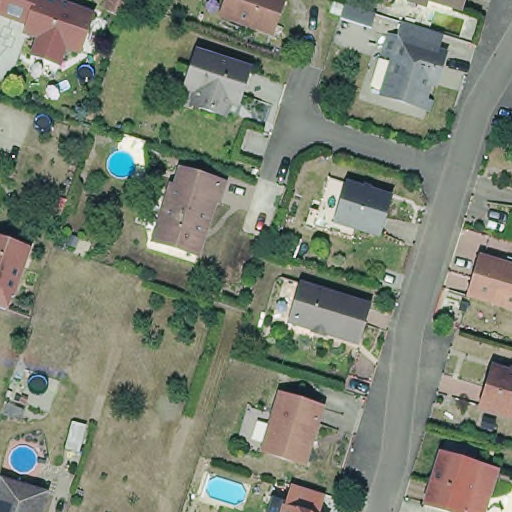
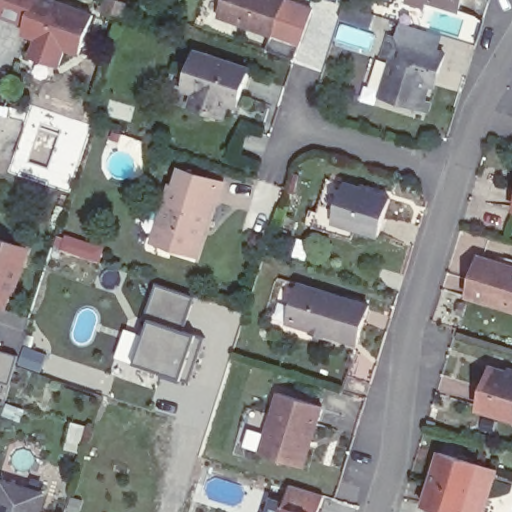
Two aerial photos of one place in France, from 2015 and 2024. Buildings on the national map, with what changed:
unchanged [(35,35),(23,31),(27,23),(0,13),(0,2),(1,0),(55,0),(95,14),(80,52),(65,47),(60,66),(28,56),(35,35)]
unchanged [(272,38),(221,19),(228,0),(275,0),(284,4),(275,28),(284,31),(280,41),(272,38)]
unchanged [(414,0),(431,0),(430,5),(414,0)]
unchanged [(442,0),(463,0),(462,6),(442,0)]
unchanged [(422,114),(380,100),(391,65),(382,64),(389,44),(397,46),(401,33),(428,43),(442,46),(437,59),(446,62),(440,81),(436,94),(429,93),(424,109),(431,110),(429,116),(422,114)]
unchanged [(230,92),(227,104),(196,96),(200,84),(188,80),(193,64),(200,42),(252,59),(242,89),(240,95),(230,92)]
unchanged [(171,184),(175,186),(181,168),(223,183),(217,201),(213,199),(195,254),(153,239),(171,184)]
unchanged [(346,223),(367,229),(363,239),(327,228),(342,179),(359,183),(346,223)]
unchanged [(346,223),(359,183),(402,197),(390,237),(367,229),(346,223)]
unchanged [(0,303),(0,237),(29,247),(6,305),(0,303)]
unchanged [(509,314),(452,296),(465,258),(492,266),(494,259),(512,265),(512,315),(509,314)]
unchanged [(359,340),(291,319),(303,280),(371,302),(359,340)]
new [(191,297),(179,330),(201,337),(187,384),(128,363),(154,284),(191,297)]
new [(1,343),(0,347),(0,343),(1,343)]
new [(19,356),(10,385),(0,382),(0,350),(19,356)]
unchanged [(495,371),(512,376),(512,419),(482,410),(495,371)]
unchanged [(310,463),(267,451),(265,451),(278,412),(284,393),(328,407),(310,463)]
unchanged [(265,459),(240,451),(255,404),(278,412),(265,451),(267,451),(265,459)]
unchanged [(484,512),(449,512),(423,504),(438,454),(482,468),(497,472),(484,512)]
unchanged [(39,494),(33,512),(0,512),(0,483),(39,494)]
unchanged [(279,510),(285,512),(278,512),(279,510)]

